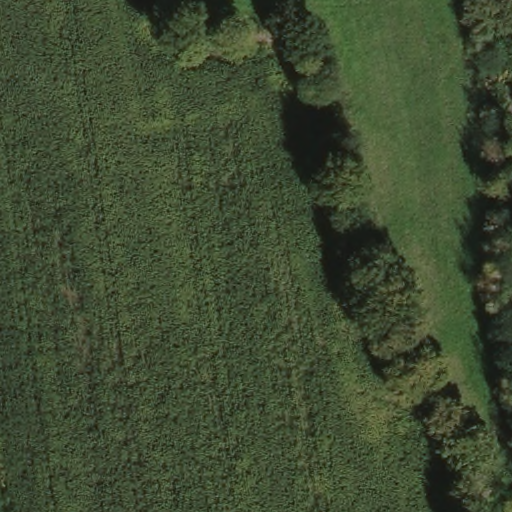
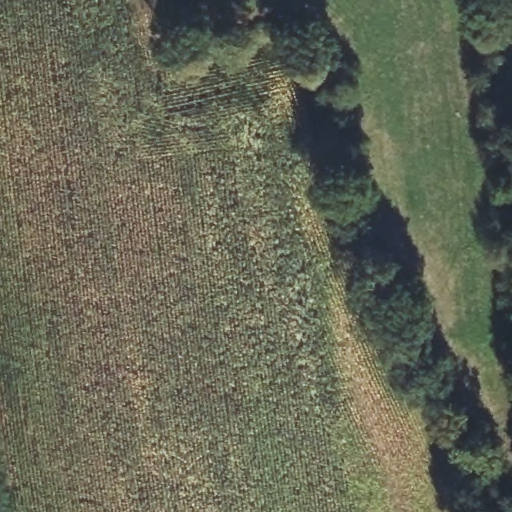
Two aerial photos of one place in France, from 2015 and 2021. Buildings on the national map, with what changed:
[]

